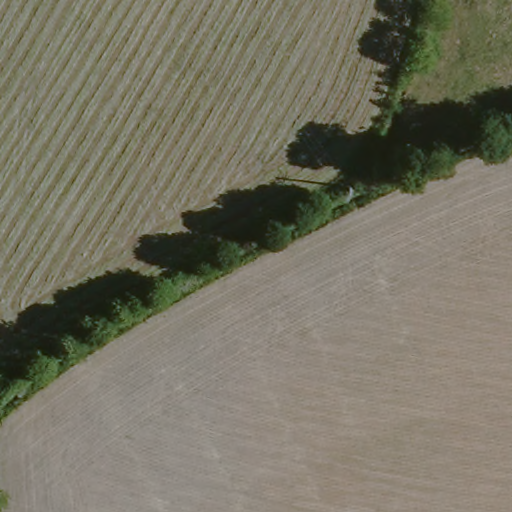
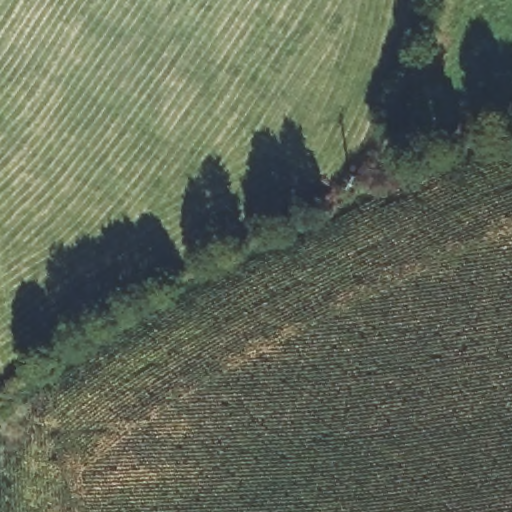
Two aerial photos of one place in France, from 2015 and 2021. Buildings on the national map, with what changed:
[]

